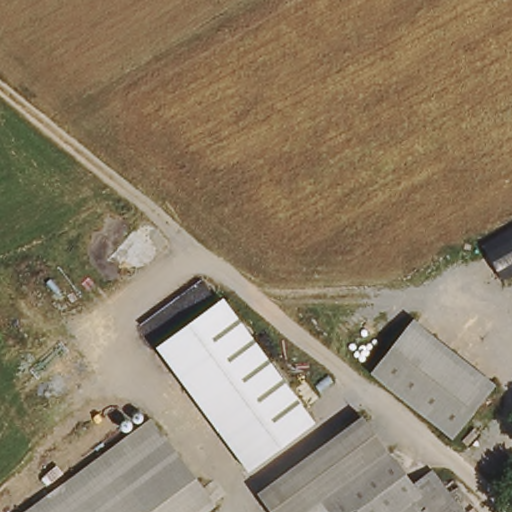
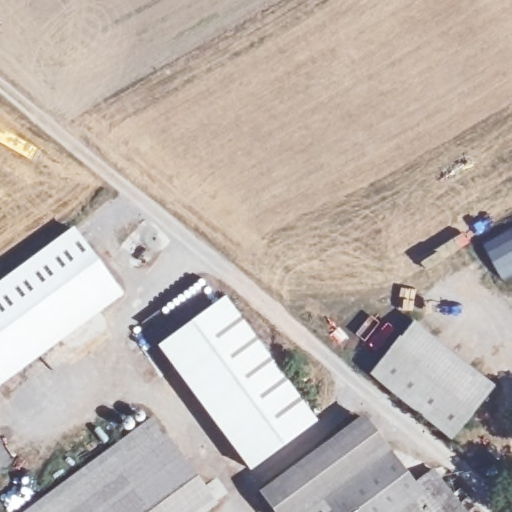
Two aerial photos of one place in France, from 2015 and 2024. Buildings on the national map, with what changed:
new [(0,282),(73,229),(123,295),(0,385),(0,282)]
unchanged [(512,231),(512,272),(500,278),(484,246),(512,231)]
new [(161,349),(142,325),(203,280),(220,306),(161,349)]
unchanged [(228,300),(316,424),(251,472),(161,349),(228,300)]
unchanged [(496,384),(452,439),(370,373),(414,319),(496,384)]
unchanged [(361,425),(383,456),(318,505),(307,512),(269,512),(257,493),(298,465),(300,468),(361,425)]
unchanged [(119,456),(158,428),(183,463),(208,497),(188,512),(41,512),(103,468),(119,456)]
unchanged [(397,512),(323,512),(318,505),(383,456),(414,497),(398,511),(397,512)]
unchanged [(455,512),(397,512),(398,511),(414,497),(433,485),(455,512)]
unchanged [(323,512),(307,512),(318,505),(323,512)]

